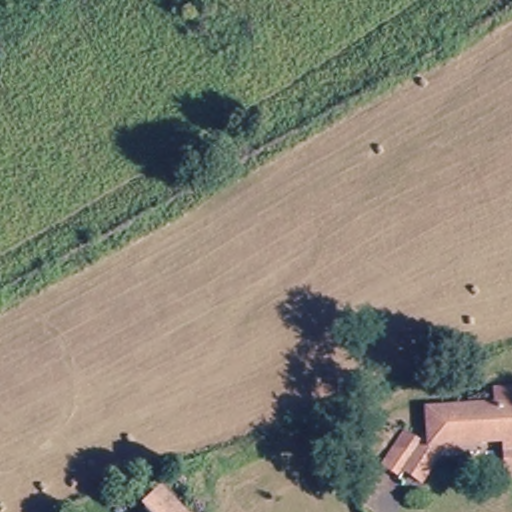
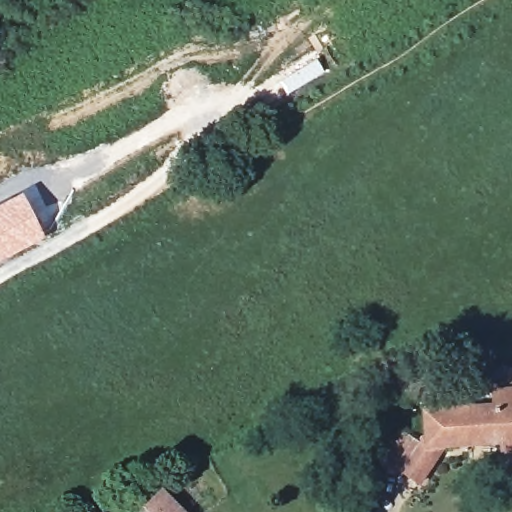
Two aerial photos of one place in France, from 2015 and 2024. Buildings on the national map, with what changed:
new [(44,236),(0,259),(0,203),(21,192),(44,236)]
unchanged [(428,412),(497,407),(496,392),(512,391),(512,477),(506,477),(504,441),(463,444),(446,445),(421,483),(405,472),(400,480),(381,466),(405,431),(421,441),(422,440),(424,438),(425,437),(427,436),(430,436),(428,412)]
unchanged [(161,488),(185,512),(152,512),(145,505),(161,488)]

